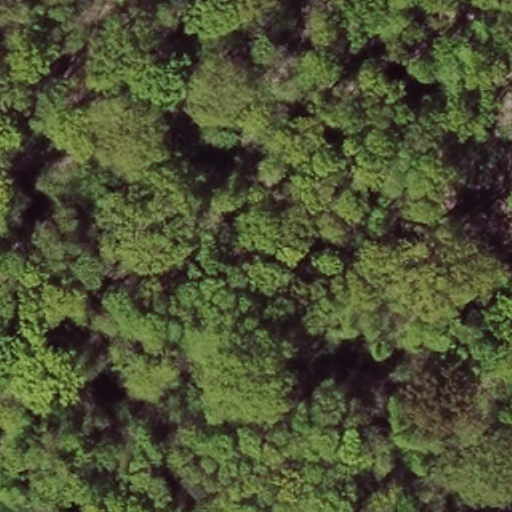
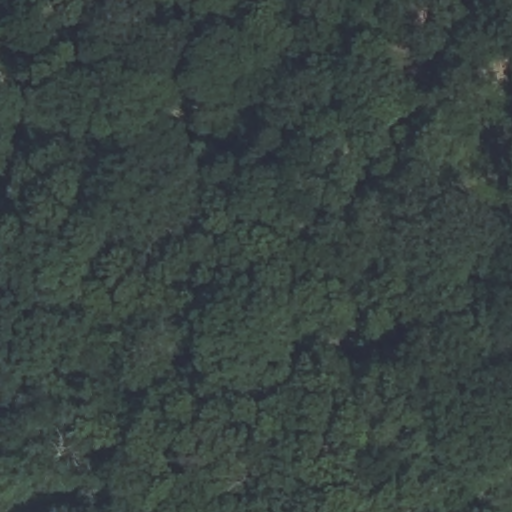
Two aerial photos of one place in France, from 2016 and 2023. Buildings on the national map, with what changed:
[]

